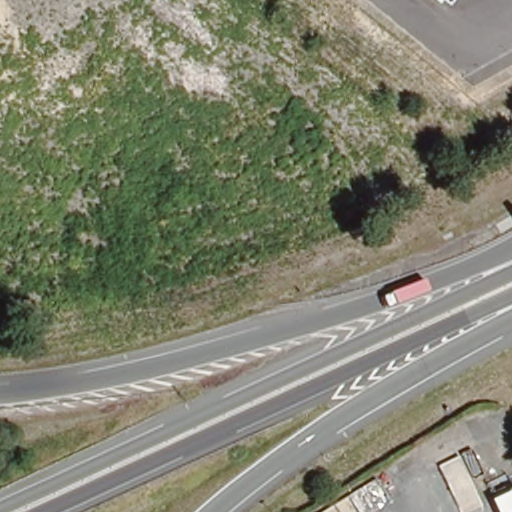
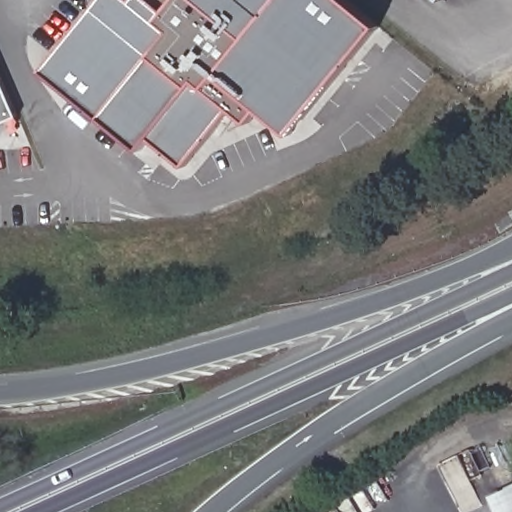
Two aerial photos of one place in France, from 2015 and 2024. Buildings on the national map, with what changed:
new [(277,128),(249,104),(229,125),(215,111),(176,159),(144,130),(124,150),(79,106),(68,120),(27,74),(92,0),(320,0),(359,34),(277,128)]
new [(16,115),(0,123),(0,76),(16,115)]
unchanged [(512,492),(512,512),(501,512),(495,499),(512,492)]

